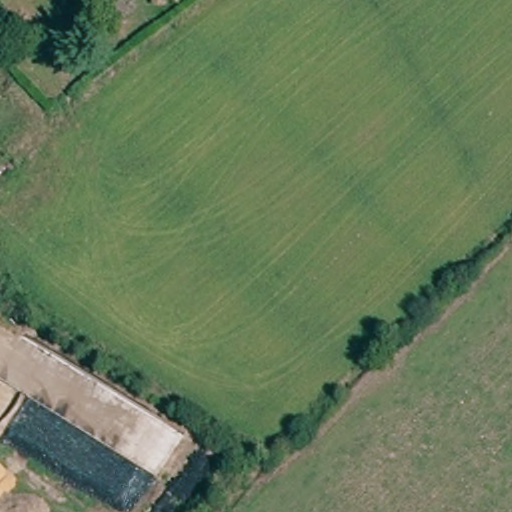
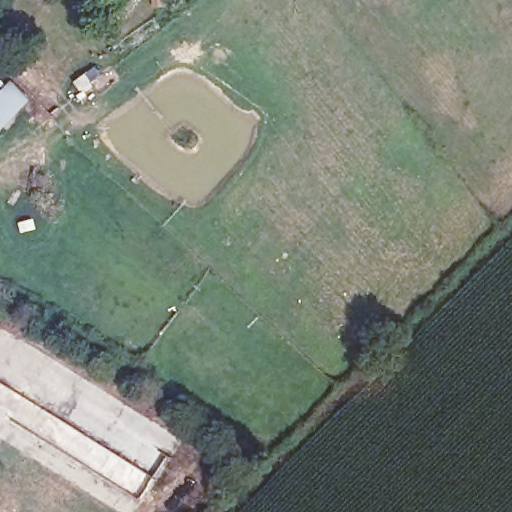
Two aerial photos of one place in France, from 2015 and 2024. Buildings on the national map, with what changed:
new [(11,81),(31,101),(0,133),(0,93),(11,81)]

